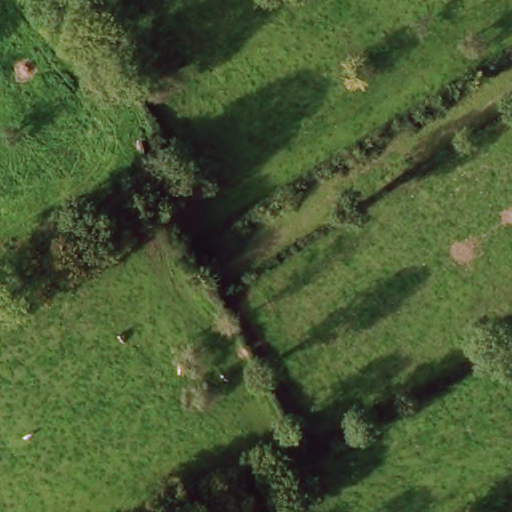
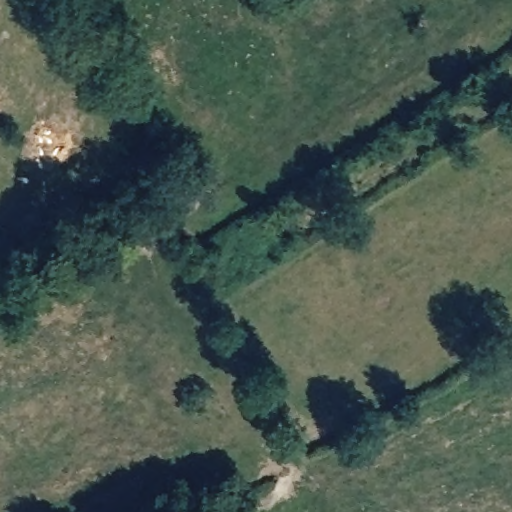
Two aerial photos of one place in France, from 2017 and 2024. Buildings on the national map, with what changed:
[]

